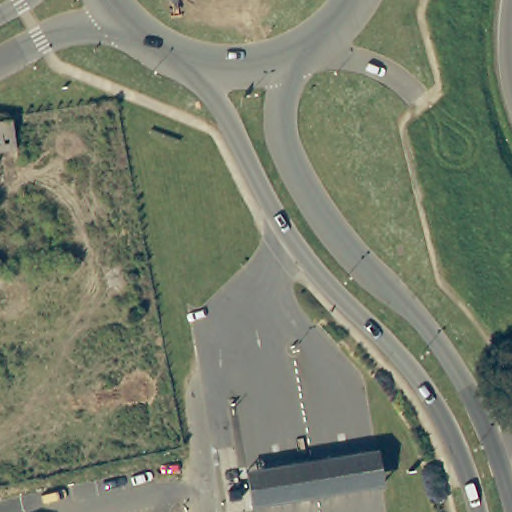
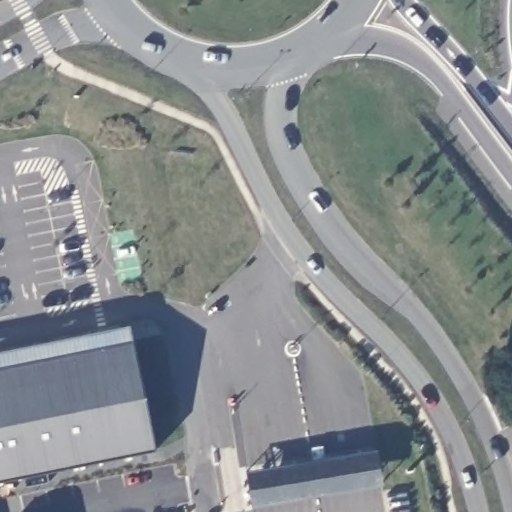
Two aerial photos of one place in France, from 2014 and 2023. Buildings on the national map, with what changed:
demolished [(0,151),(0,122),(11,120),(16,149),(0,151)]
new [(155,450),(0,481),(0,351),(130,325),(155,450)]
unchanged [(384,485),(255,505),(249,471),(378,451),(384,485)]

